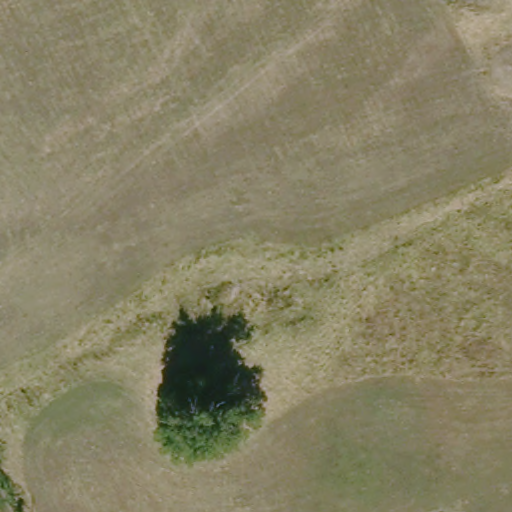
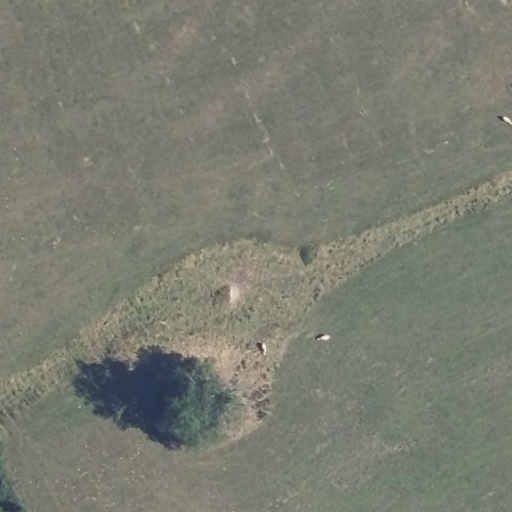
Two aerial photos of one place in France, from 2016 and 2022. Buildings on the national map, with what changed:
[]

